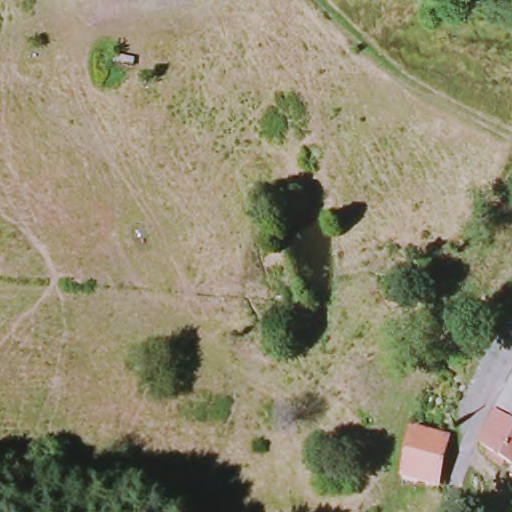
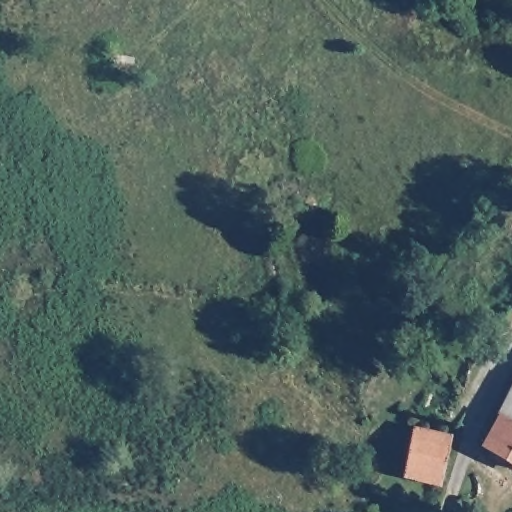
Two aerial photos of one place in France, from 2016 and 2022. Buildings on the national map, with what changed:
unchanged [(512,386),(512,467),(481,449),(512,386)]
unchanged [(433,483),(401,477),(409,434),(441,439),(433,483)]

